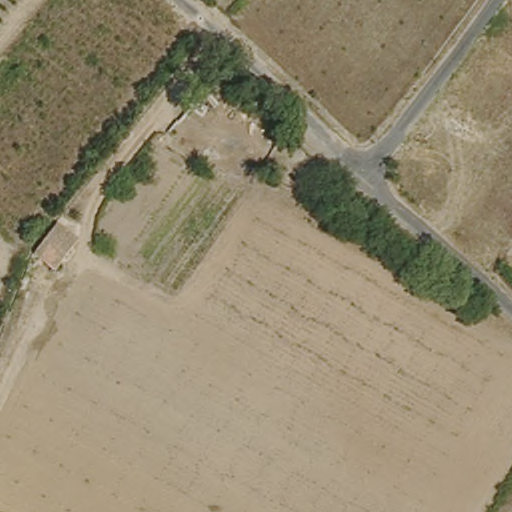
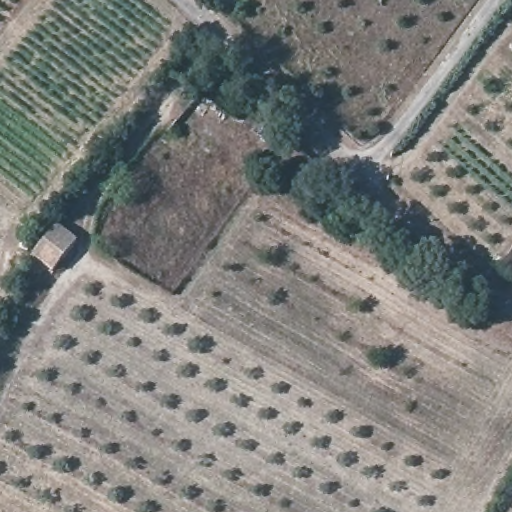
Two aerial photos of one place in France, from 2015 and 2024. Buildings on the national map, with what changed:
unchanged [(30,258),(59,229),(72,243),(46,269),(30,258)]

